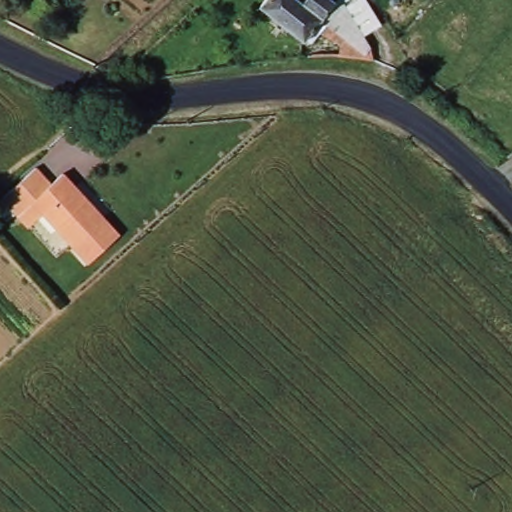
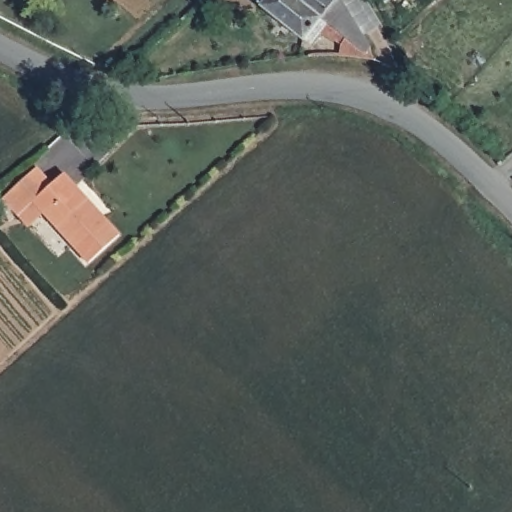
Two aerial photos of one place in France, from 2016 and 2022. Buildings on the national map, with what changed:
unchanged [(339,0),(346,12),(363,41),(368,50),(372,56),(360,53),(347,52),(335,51),(334,51),(335,40),(314,29),(320,19),(317,17),(299,37),(257,3),(260,0),(339,0)]
unchanged [(16,208),(5,192),(42,166),(53,182),(69,172),(117,235),(84,261),(33,197),(16,208)]

